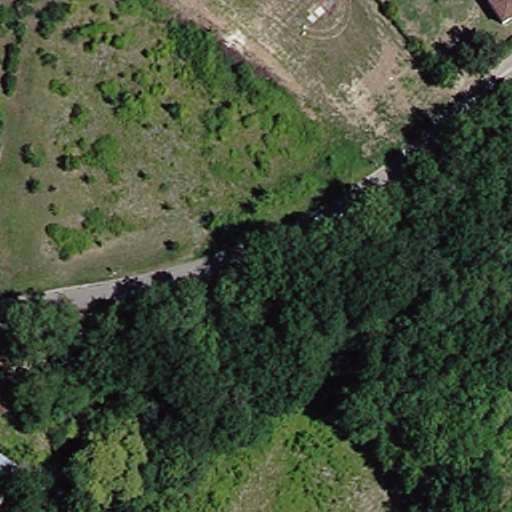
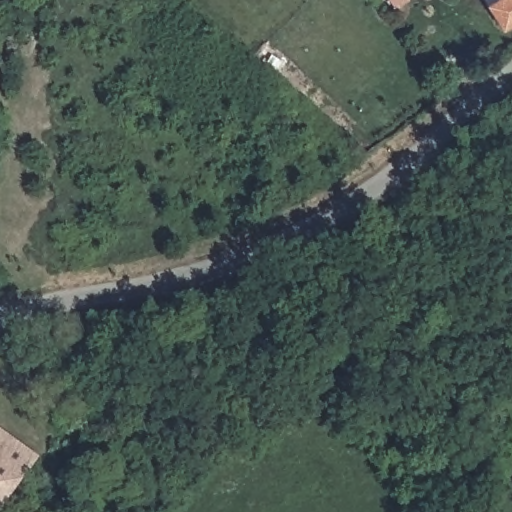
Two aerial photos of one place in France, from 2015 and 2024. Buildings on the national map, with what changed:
unchanged [(505,0),(512,0),(512,28),(497,5),(505,0)]
unchanged [(111,325),(93,326),(93,337),(72,338),(67,313),(111,313),(111,325)]
new [(0,509),(0,428),(40,457),(0,509)]
demolished [(0,495),(0,458),(29,483),(13,504),(0,495)]
demolished [(0,512),(0,495),(13,504),(6,512),(0,512)]

